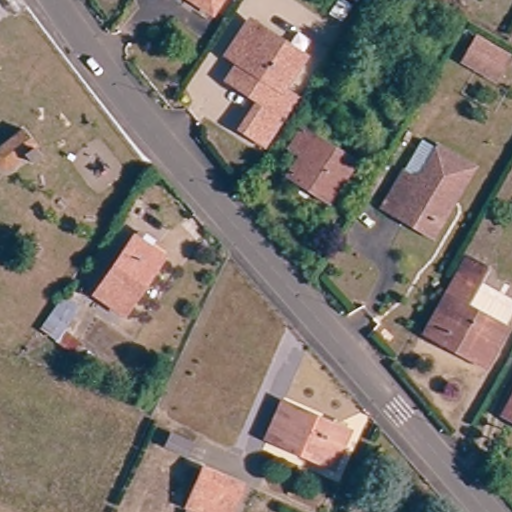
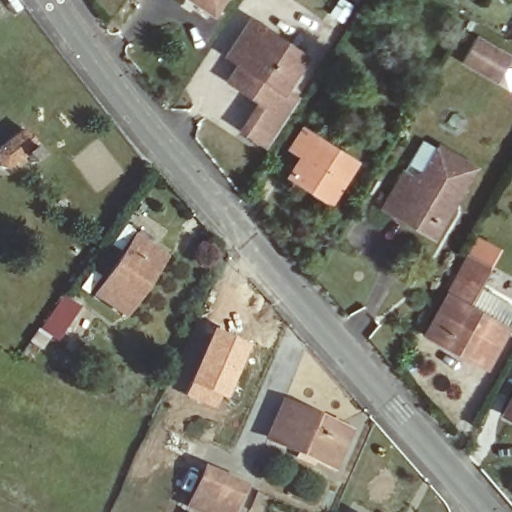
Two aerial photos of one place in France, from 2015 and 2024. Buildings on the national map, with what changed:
unchanged [(217,11),(200,0),(224,0),(217,11)]
unchanged [(261,134),(235,115),(254,88),(223,66),(235,48),(225,41),(247,9),(313,55),(261,134)]
unchanged [(507,55),(494,77),(461,58),(475,36),(507,55)]
unchanged [(352,179),(347,176),(335,197),(296,174),(308,153),(297,146),(308,127),(363,159),(352,179)]
unchanged [(7,169),(0,166),(0,151),(1,149),(28,129),(40,145),(38,148),(44,155),(35,162),(28,155),(15,167),(7,169)]
unchanged [(395,223),(379,213),(400,179),(408,184),(419,180),(435,153),(470,174),(454,202),(430,243),(395,223)]
unchanged [(127,313),(97,293),(135,237),(165,258),(127,313)]
unchanged [(430,331),(461,273),(472,254),(492,266),(481,285),(512,302),(512,321),(509,325),(488,365),(430,331)]
new [(210,328),(247,344),(234,375),(215,409),(183,394),(210,328)]
unchanged [(512,396),(512,414),(505,410),(512,396)]
unchanged [(336,464),(272,436),(287,403),(351,430),(336,464)]
unchanged [(185,458),(162,448),(169,434),(192,444),(185,458)]
unchanged [(225,512),(192,498),(210,462),(249,479),(233,512),(225,512)]
unchanged [(200,512),(186,512),(189,506),(200,512)]

